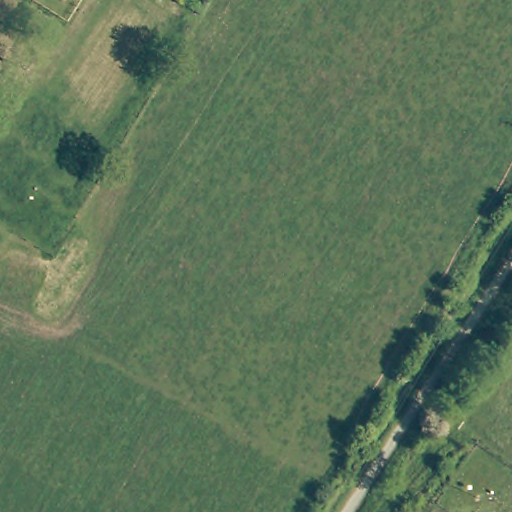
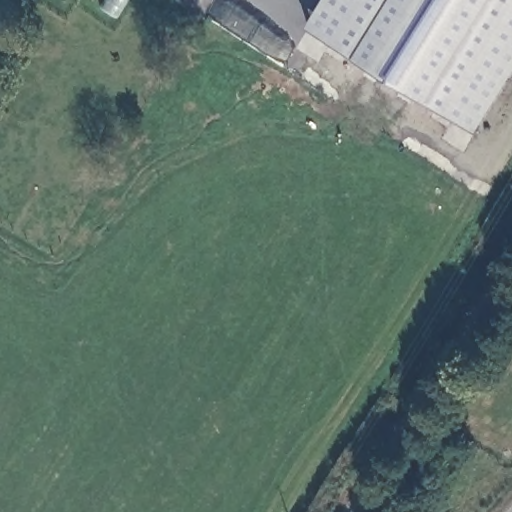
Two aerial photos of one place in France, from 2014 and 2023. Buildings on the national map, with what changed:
new [(512,78),(479,132),(309,24),(324,0),(512,0),(512,78)]

